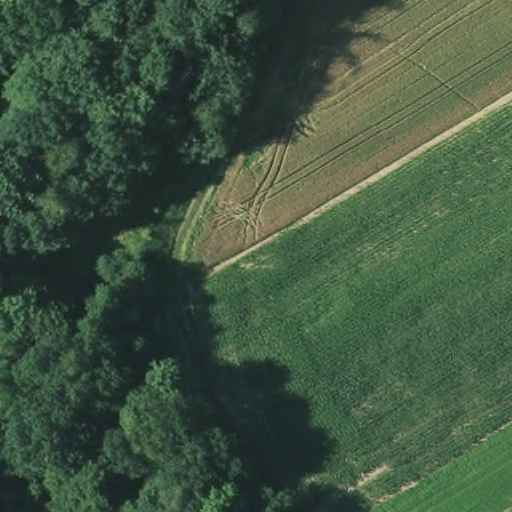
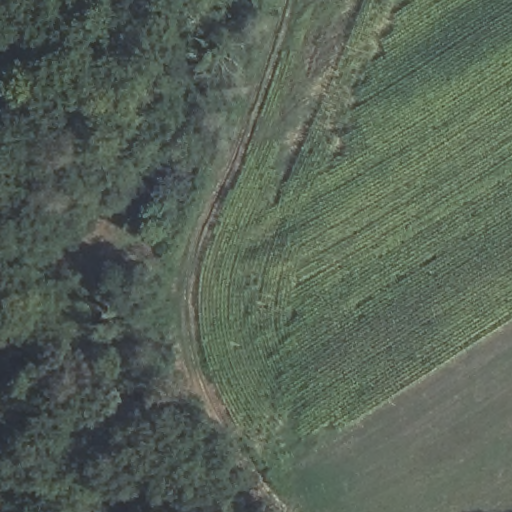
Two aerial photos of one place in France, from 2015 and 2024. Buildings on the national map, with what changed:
unchanged [(91,195),(92,170),(117,170),(116,186),(116,195),(104,195),(91,195)]

